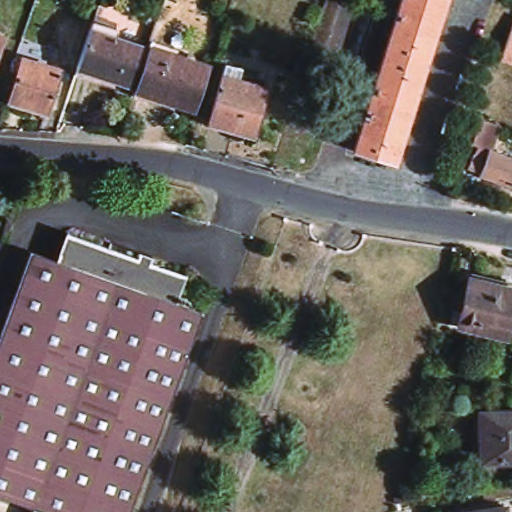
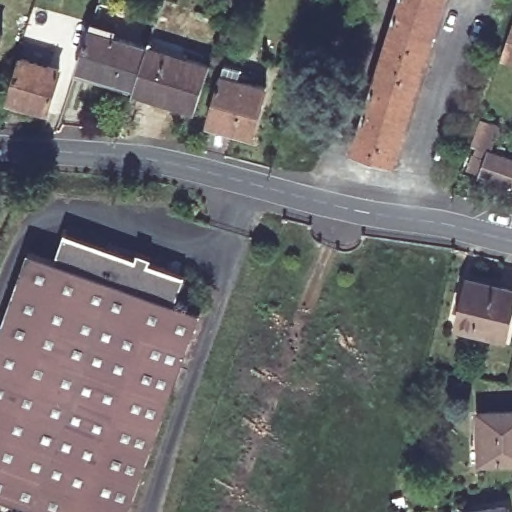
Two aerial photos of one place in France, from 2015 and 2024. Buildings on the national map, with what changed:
unchanged [(396,170),(356,159),(403,0),(447,0),(396,170)]
unchanged [(500,59),(512,25),(512,63),(500,59)]
unchanged [(137,100),(77,80),(93,31),(115,40),(113,48),(150,60),(138,95),(137,100)]
unchanged [(0,50),(0,36),(4,37),(0,50)]
unchanged [(197,120),(160,108),(161,103),(138,95),(150,60),(152,53),(212,73),(197,120)]
unchanged [(43,120),(7,108),(21,65),(57,76),(43,120)]
unchanged [(253,141),(208,126),(224,76),(227,65),(243,70),(240,81),(269,90),(253,141)]
unchanged [(492,137),(479,132),(481,127),(494,132),(492,137)]
unchanged [(482,177),(483,175),(469,170),(475,157),(486,162),(490,154),(512,161),(512,188),(482,177)]
unchanged [(200,320),(133,512),(25,512),(0,503),(0,344),(31,260),(56,269),(67,242),(136,266),(140,258),(156,262),(152,272),(187,283),(177,311),(200,320)]
unchanged [(507,342),(460,332),(473,283),(512,292),(512,323),(507,342)]
unchanged [(484,468),(481,417),(512,416),(512,467),(484,468)]
unchanged [(491,512),(506,510),(506,512),(491,512)]

